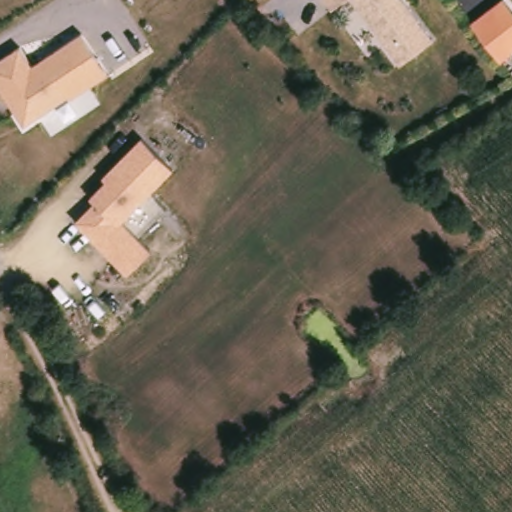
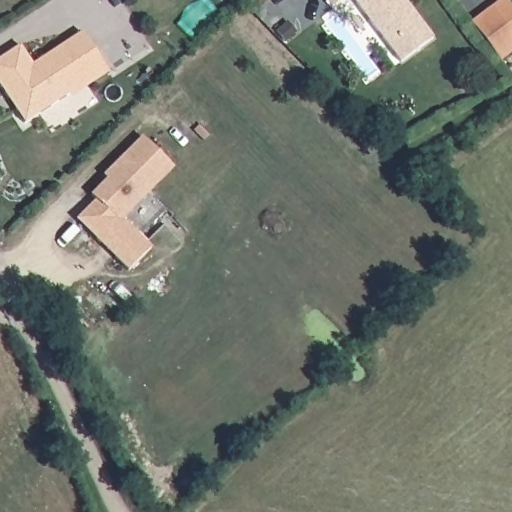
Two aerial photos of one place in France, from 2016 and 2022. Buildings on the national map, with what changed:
unchanged [(329,11),(321,0),(343,0),(329,11)]
unchanged [(397,66),(349,0),(399,0),(430,42),(397,66)]
unchanged [(495,67),(486,54),(467,28),(485,15),(500,4),(512,20),(512,54),(495,67)]
unchanged [(0,59),(21,47),(31,63),(81,33),(107,72),(25,123),(0,86),(0,59)]
unchanged [(141,139),(173,171),(120,222),(151,250),(129,274),(76,221),(93,204),(88,199),(106,183),(103,177),(141,139)]

